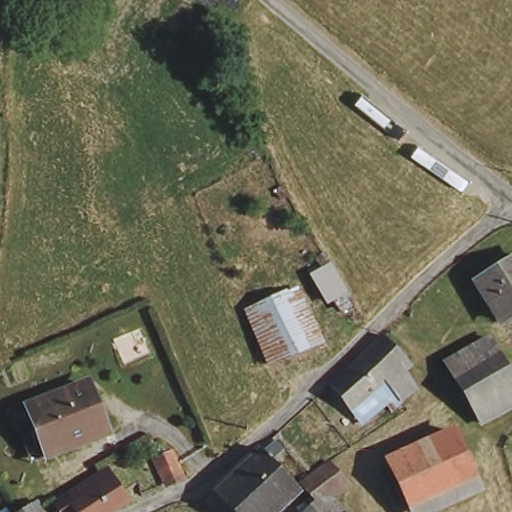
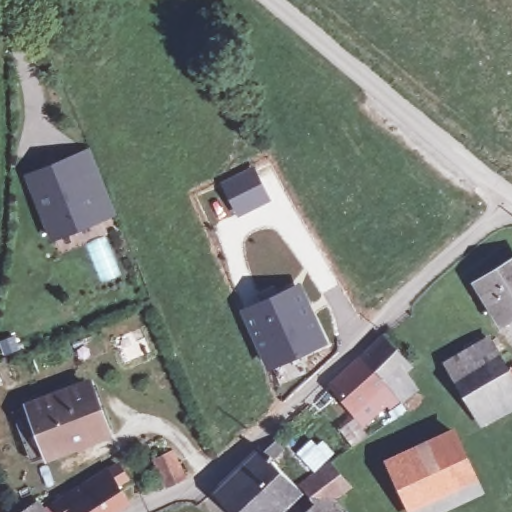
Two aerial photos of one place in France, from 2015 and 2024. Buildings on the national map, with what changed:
new [(50,240),(24,174),(89,148),(115,215),(50,240)]
new [(268,198),(241,211),(227,182),(254,169),(268,198)]
unchanged [(512,257),(512,313),(500,322),(473,286),(512,257)]
demolished [(348,295),(353,309),(340,315),(334,302),(325,306),(306,268),(331,258),(348,295)]
unchanged [(300,289),(322,341),(265,366),(242,313),(300,289)]
unchanged [(484,424),(454,379),(449,383),(440,370),(480,344),(488,357),(512,393),(512,405),(484,424)]
unchanged [(385,350),(412,377),(390,398),(363,371),(362,370),(385,350)]
unchanged [(362,370),(363,371),(390,398),(405,414),(397,421),(388,411),(365,432),(331,399),(362,370)]
unchanged [(57,463),(53,453),(41,458),(29,430),(41,425),(35,409),(89,386),(107,429),(112,440),(57,463)]
unchanged [(455,439),(479,490),(431,512),(407,461),(455,439)]
unchanged [(167,451),(169,450),(181,473),(164,481),(152,460),(167,451)]
unchanged [(277,512),(226,512),(213,498),(255,459),(293,496),(277,512)]
unchanged [(407,461),(431,512),(410,512),(390,469),(407,461)]
unchanged [(339,496),(330,503),(322,510),(320,512),(310,512),(293,496),(310,480),(323,472),(339,496)]
unchanged [(110,476),(130,506),(121,512),(70,512),(65,504),(75,498),(91,488),(110,476)]
unchanged [(40,504),(46,512),(16,512),(36,498),(40,504)]
unchanged [(324,512),(320,512),(322,510),(324,512)]

